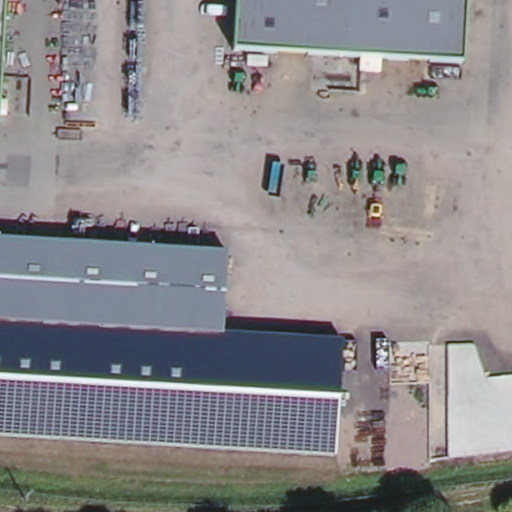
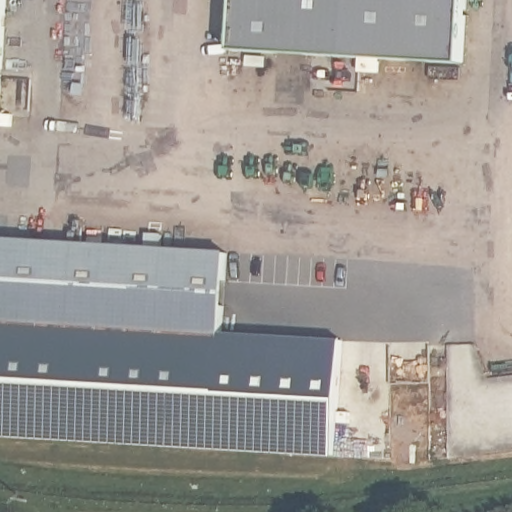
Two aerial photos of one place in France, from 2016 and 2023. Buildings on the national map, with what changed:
unchanged [(0,96),(0,0),(5,0),(0,96)]
unchanged [(461,61),(231,51),(234,0),(465,0),(461,61)]
unchanged [(222,244),(217,326),(0,315),(0,233),(222,244)]
unchanged [(217,326),(341,335),(336,458),(0,438),(0,315),(217,326)]

